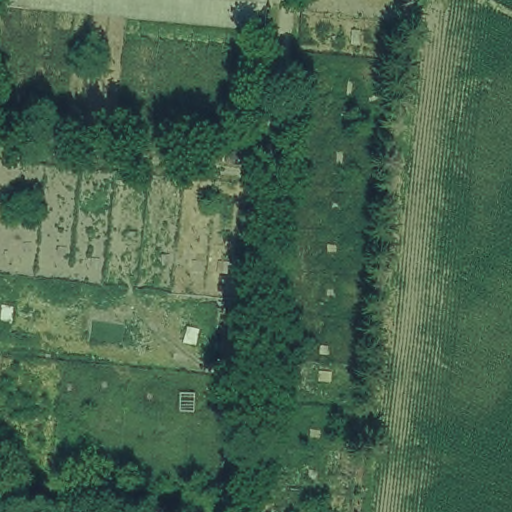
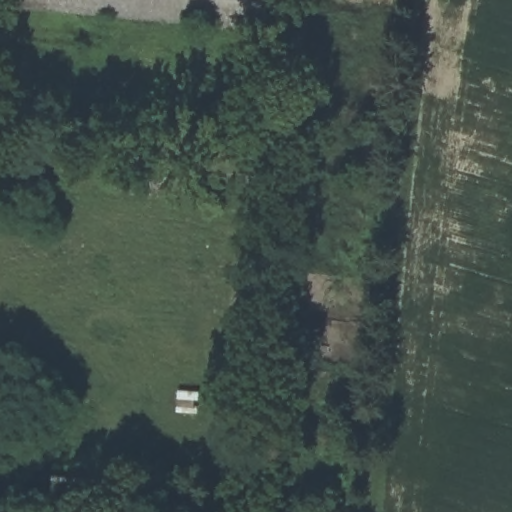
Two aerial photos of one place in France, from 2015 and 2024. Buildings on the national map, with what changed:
unchanged [(12,0),(261,0),(253,33),(12,7),(12,0)]

